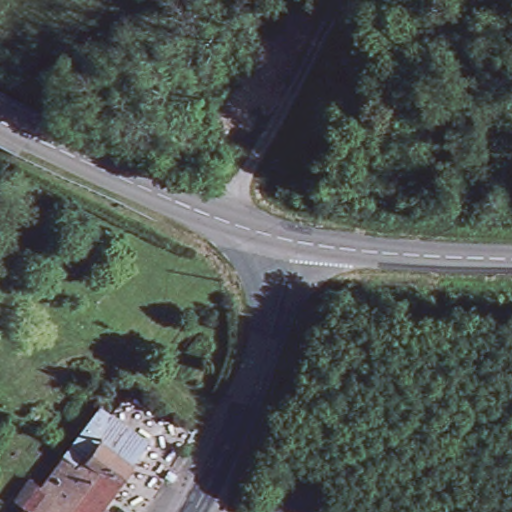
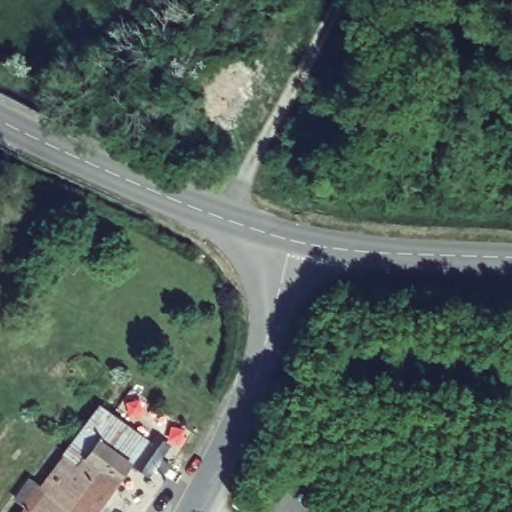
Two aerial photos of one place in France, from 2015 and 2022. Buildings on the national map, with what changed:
unchanged [(149,441),(95,512),(22,512),(102,406),(149,441)]

